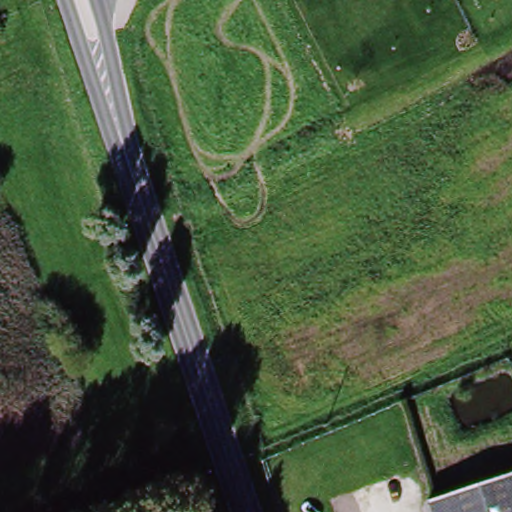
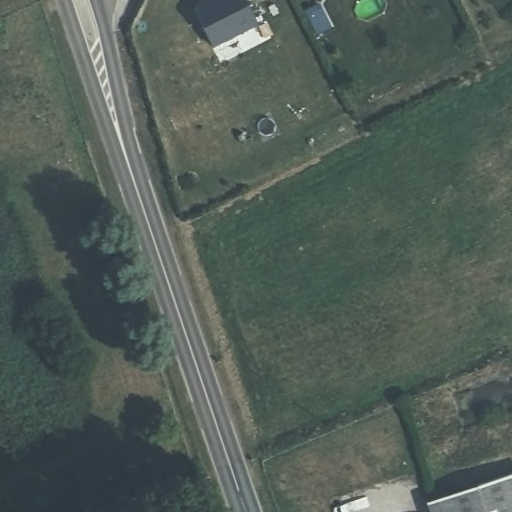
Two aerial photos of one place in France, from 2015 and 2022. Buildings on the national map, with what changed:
new [(215,47),(194,11),(197,3),(204,0),(247,0),(260,22),(215,47)]
unchanged [(431,506),(512,479),(512,512),(433,512),(431,506)]

